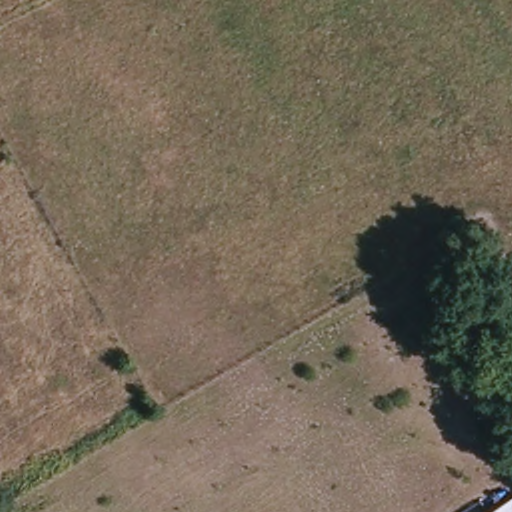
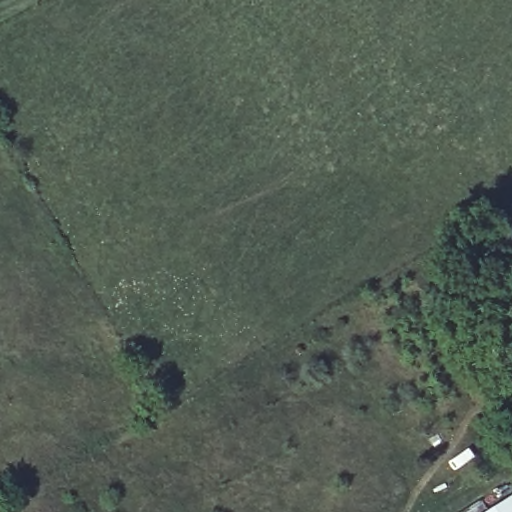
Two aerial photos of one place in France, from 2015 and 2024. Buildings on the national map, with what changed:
unchanged [(512,501),(512,512),(493,512),(512,501)]

